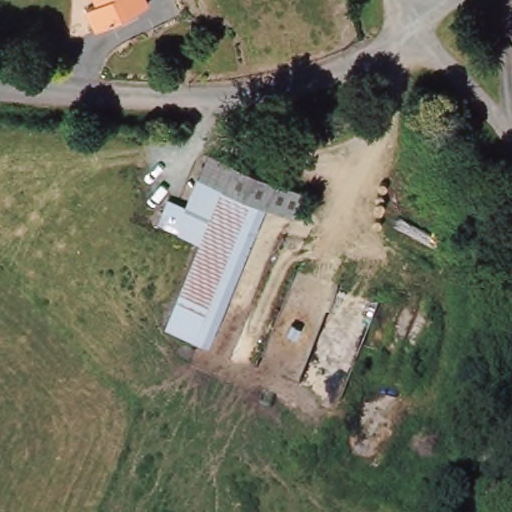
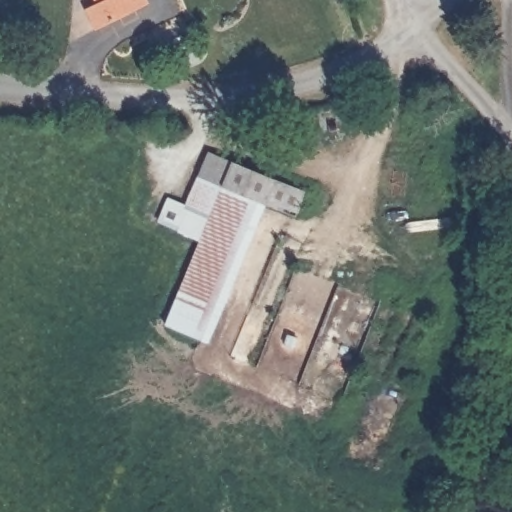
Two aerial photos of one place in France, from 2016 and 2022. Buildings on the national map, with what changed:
unchanged [(94,29),(84,9),(94,3),(92,0),(147,0),(149,3),(94,29)]
unchanged [(162,228),(174,202),(192,209),(216,153),(310,193),(299,219),(263,204),(229,189),(205,246),(162,228)]
unchanged [(229,189),(263,204),(205,344),(171,329),(205,246),(229,189)]

